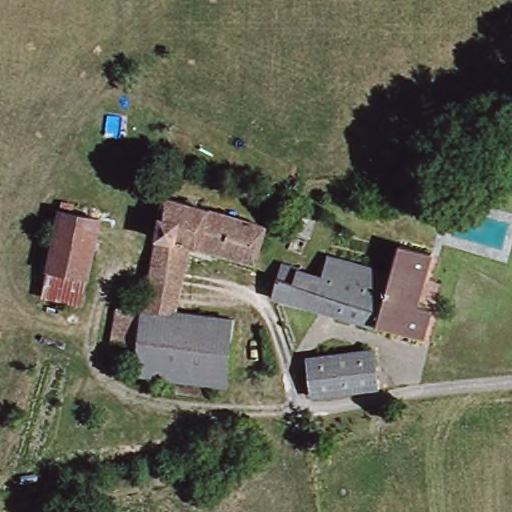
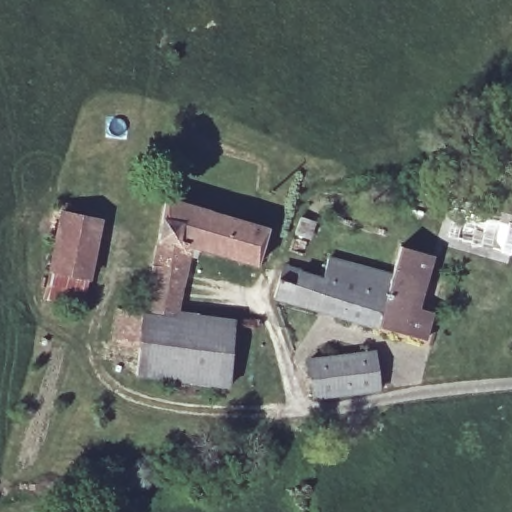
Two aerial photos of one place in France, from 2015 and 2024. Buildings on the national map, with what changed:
unchanged [(450,179),(455,192),(442,197),(437,183),(450,179)]
unchanged [(170,205),(270,231),(260,270),(191,252),(176,316),(236,330),(223,391),(129,373),(133,351),(109,346),(118,306),(142,311),(151,275),(170,205)]
unchanged [(307,219),(302,234),(287,230),(293,214),(307,219)]
unchanged [(60,305),(37,298),(62,215),(95,225),(85,259),(70,307),(60,305)]
unchanged [(279,255),(285,237),(298,241),(292,259),(279,255)]
unchanged [(388,274),(400,237),(432,248),(425,274),(416,272),(407,302),(370,292),(376,270),(388,274)]
unchanged [(370,292),(407,302),(428,310),(420,340),(390,333),(265,300),(277,262),(295,267),(293,272),(316,277),(322,255),(376,270),(370,292)]
unchanged [(373,385),(315,398),(307,363),(365,351),(373,385)]

